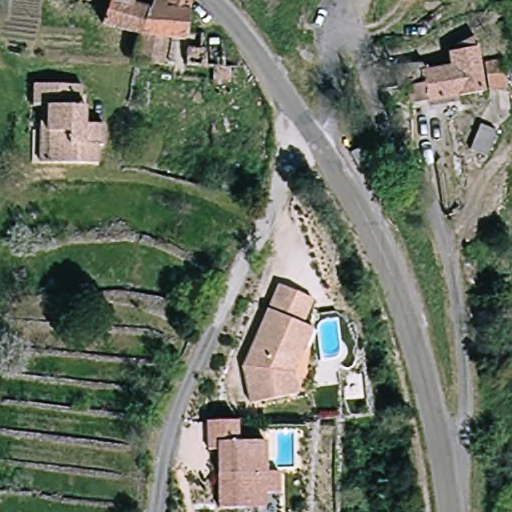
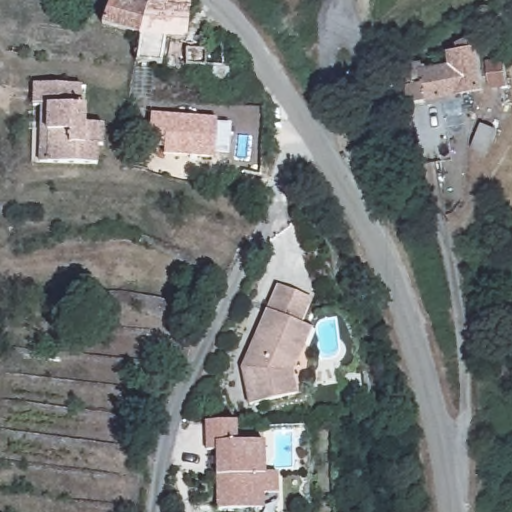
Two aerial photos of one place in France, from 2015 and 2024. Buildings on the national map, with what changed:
unchanged [(144,32),(140,32),(103,21),(111,4),(112,0),(155,0),(144,32)]
unchanged [(192,37),(168,34),(167,65),(139,62),(140,32),(144,32),(155,0),(194,0),(192,37)]
unchanged [(415,85),(402,87),(399,67),(429,62),(430,67),(458,62),(455,48),(462,46),(460,36),(477,27),(480,41),(492,89),(418,101),(415,85)]
unchanged [(232,82),(216,85),(215,70),(187,67),(187,49),(206,48),(207,66),(230,67),(232,82)]
unchanged [(505,58),(512,82),(495,87),(490,62),(505,58)]
unchanged [(43,99),(39,99),(41,75),(86,79),(84,102),(90,102),(89,120),(103,121),(101,145),(96,144),(94,166),(50,162),(37,162),(43,99)]
new [(164,154),(165,141),(148,139),(151,112),(217,118),(213,157),(164,154)]
unchanged [(470,151),(482,125),(497,132),(486,157),(470,151)]
unchanged [(298,394),(249,405),(242,367),(278,285),(312,301),(302,325),(312,329),(306,344),(294,373),(298,394)]
unchanged [(279,491),(264,492),(265,507),(218,508),(216,450),(206,450),(205,421),(236,420),(237,441),(264,440),(265,471),(278,470),(279,491)]

